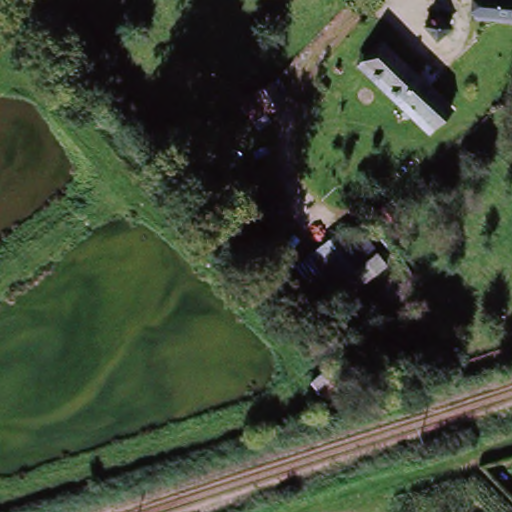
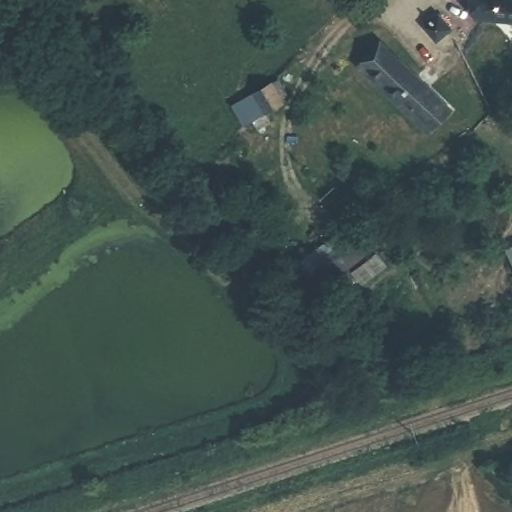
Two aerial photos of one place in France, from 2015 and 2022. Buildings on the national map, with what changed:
unchanged [(480,0),(512,0),(512,6),(480,2),(480,0)]
unchanged [(443,143),(425,123),(363,58),(381,41),(443,105),(461,125),(443,143)]
unchanged [(265,112),(252,88),(274,77),(289,103),(265,112)]
unchanged [(332,233),(361,272),(331,294),(301,255),(332,233)]

